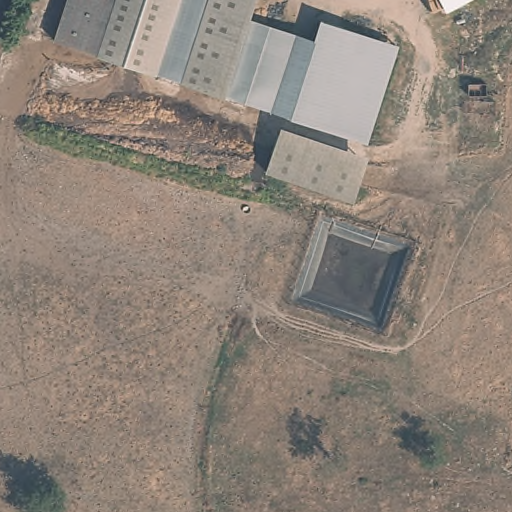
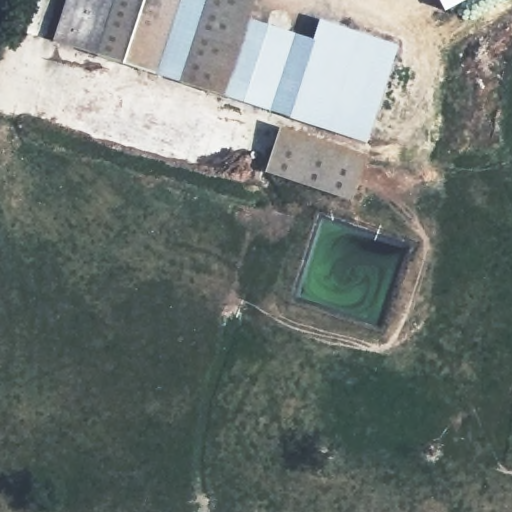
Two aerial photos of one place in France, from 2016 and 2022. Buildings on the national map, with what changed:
unchanged [(177,84),(177,83),(154,75),(153,76),(109,61),(110,60),(55,41),(68,0),(254,0),(247,23),(220,99),(177,84)]
unchanged [(446,11),(440,0),(467,0),(446,11)]
unchanged [(247,23),(310,44),(317,24),(394,50),(361,146),(220,99),(247,23)]
unchanged [(364,161),(352,199),(265,169),(278,132),(364,161)]

